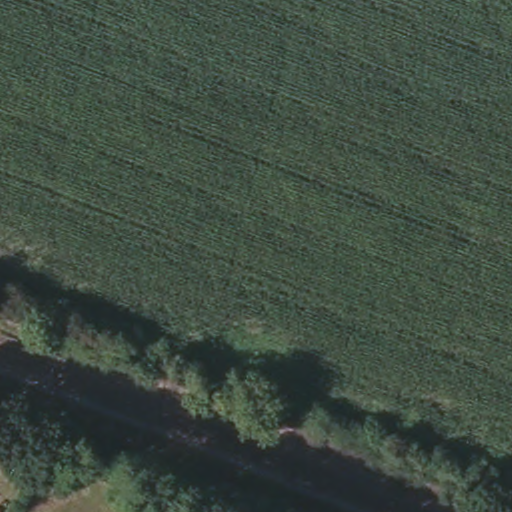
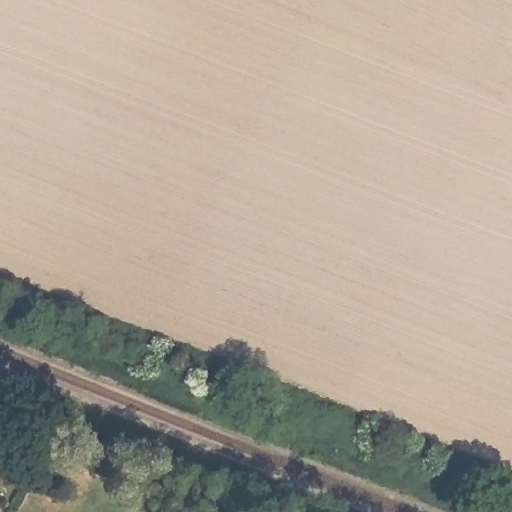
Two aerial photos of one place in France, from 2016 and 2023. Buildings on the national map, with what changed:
[]

